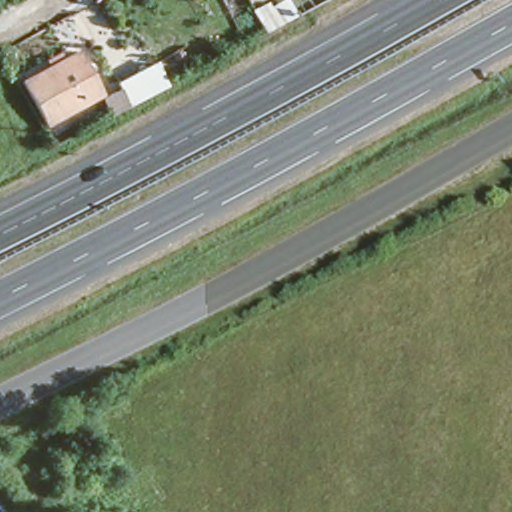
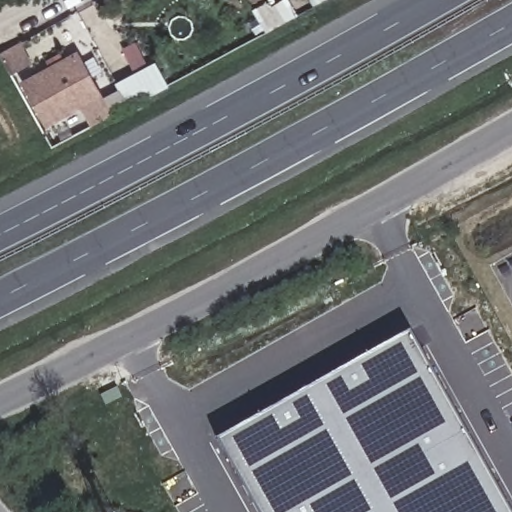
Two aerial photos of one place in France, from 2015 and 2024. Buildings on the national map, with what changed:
unchanged [(24,76),(77,46),(102,88),(49,118),(24,76)]
unchanged [(154,54),(169,80),(128,102),(115,75),(154,54)]
new [(511,512),(259,512),(217,439),(410,332),(511,512)]

